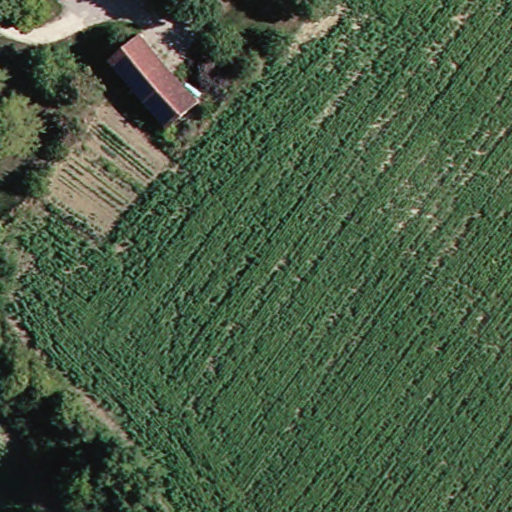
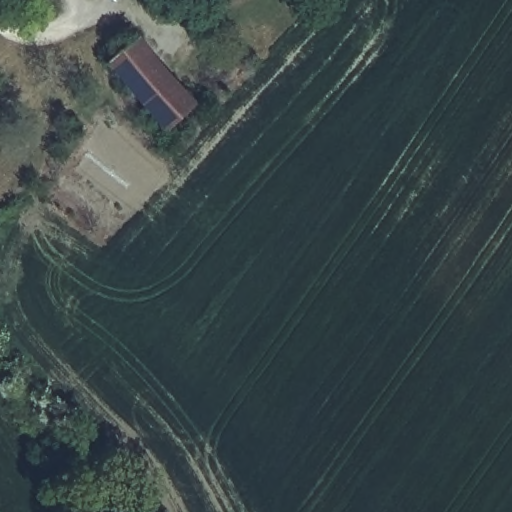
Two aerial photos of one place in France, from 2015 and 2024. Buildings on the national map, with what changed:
unchanged [(114,61),(144,36),(201,104),(171,129),(114,61)]

